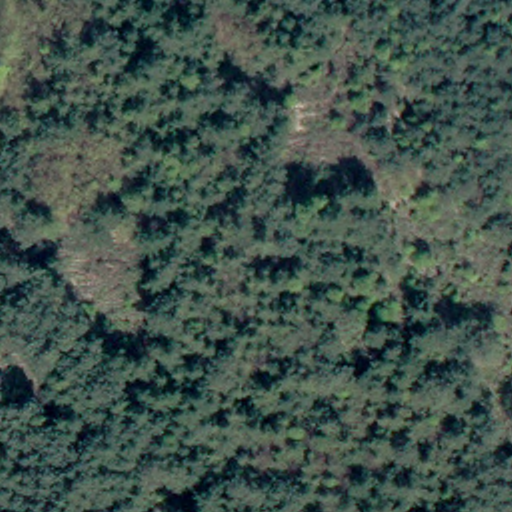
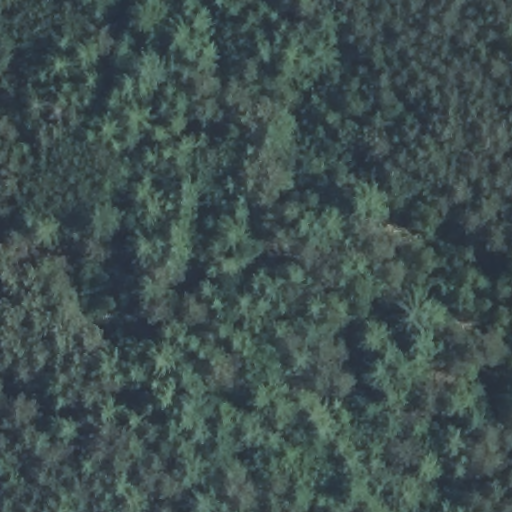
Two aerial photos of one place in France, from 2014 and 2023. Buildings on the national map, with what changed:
[]

